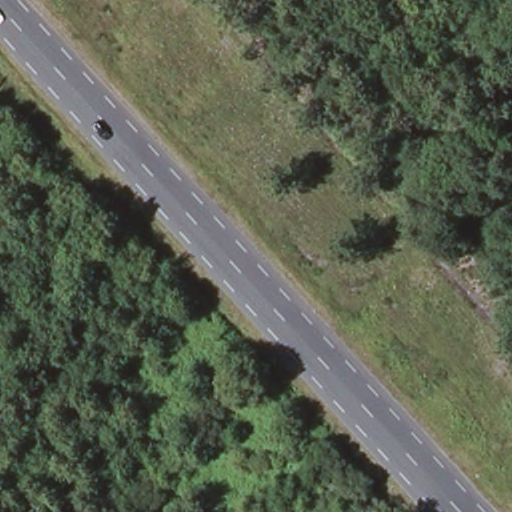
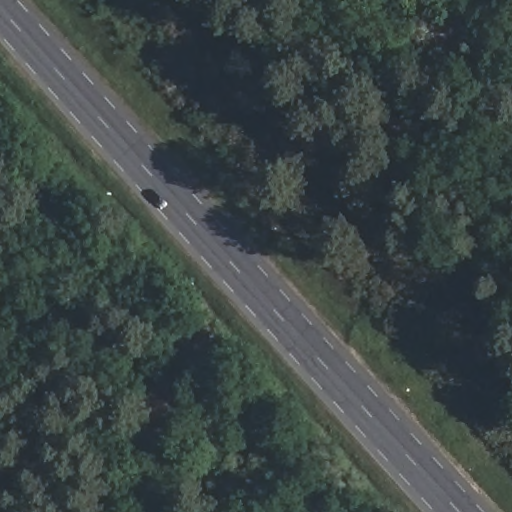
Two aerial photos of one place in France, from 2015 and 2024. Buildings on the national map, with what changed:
[]

